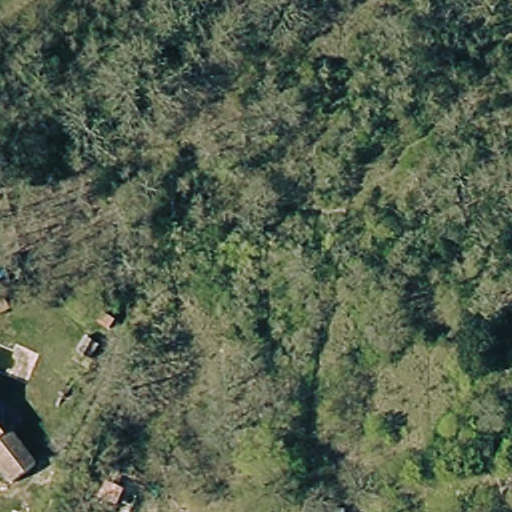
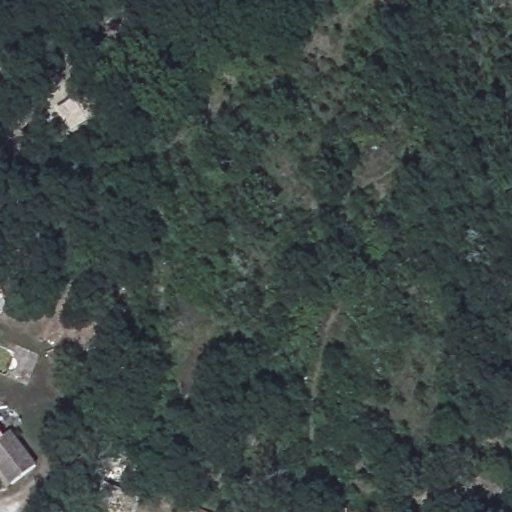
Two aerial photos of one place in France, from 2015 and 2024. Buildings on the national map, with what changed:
unchanged [(9,433),(13,430),(42,460),(20,481),(0,461),(0,425),(9,433)]

